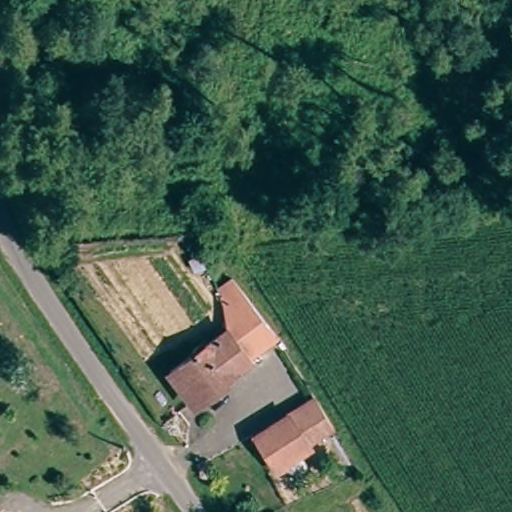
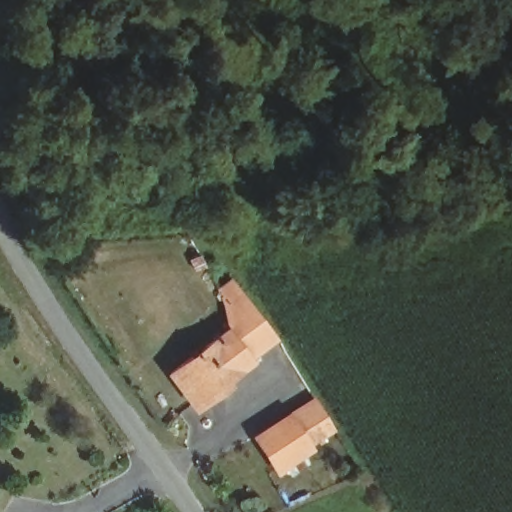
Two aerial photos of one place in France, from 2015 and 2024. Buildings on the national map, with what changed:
unchanged [(249,364),(251,365),(192,405),(170,373),(230,333),(234,317),(232,314),(227,301),(229,299),(224,291),(237,282),(251,302),(278,344),(249,364)]
unchanged [(309,398),(334,434),(276,469),(252,435),(309,398)]

